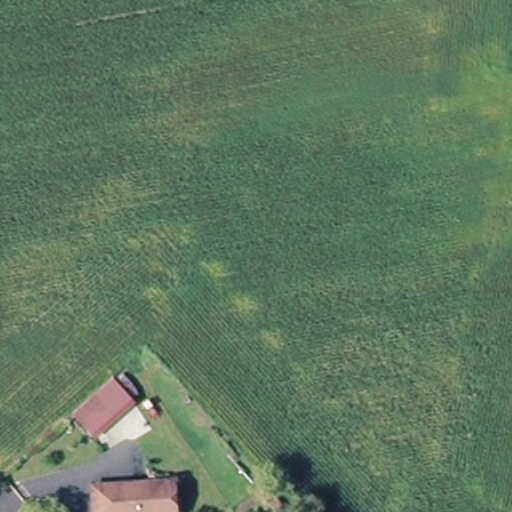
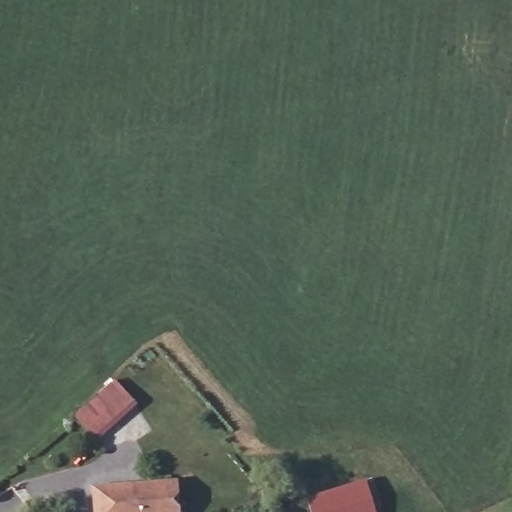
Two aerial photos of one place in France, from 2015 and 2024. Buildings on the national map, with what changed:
unchanged [(113,380),(136,405),(93,441),(71,414),(113,380)]
unchanged [(98,487),(177,483),(179,512),(99,512),(98,487)]
new [(306,501),(364,483),(374,512),(310,512),(306,501)]

